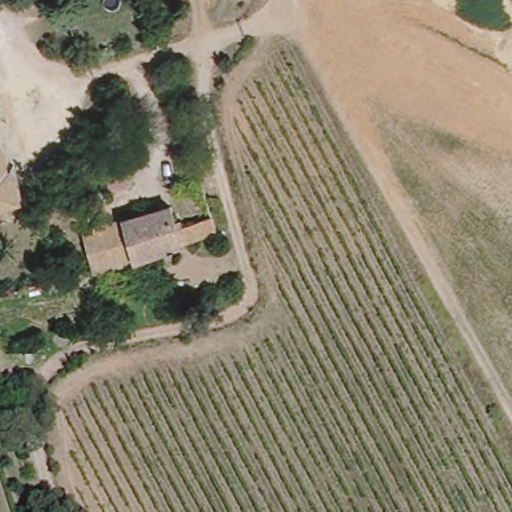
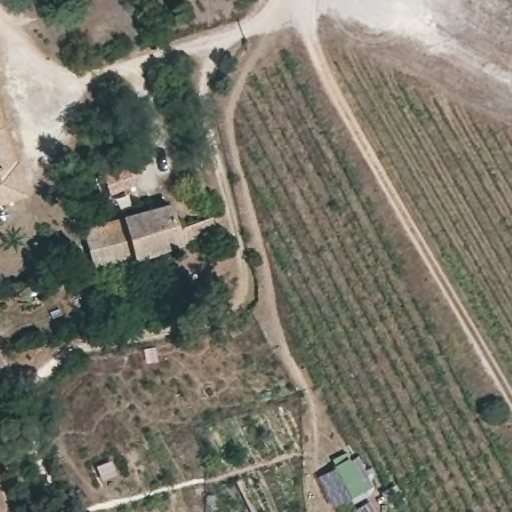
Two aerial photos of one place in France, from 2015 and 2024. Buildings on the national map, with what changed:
unchanged [(16,159),(25,191),(0,199),(0,120),(12,160),(16,159)]
unchanged [(126,184),(108,193),(101,178),(120,170),(126,184)]
unchanged [(84,230),(125,213),(171,201),(178,225),(196,219),(213,212),(218,229),(139,254),(94,266),(84,230)]
new [(316,477),(356,457),(373,487),(333,509),(316,477)]

